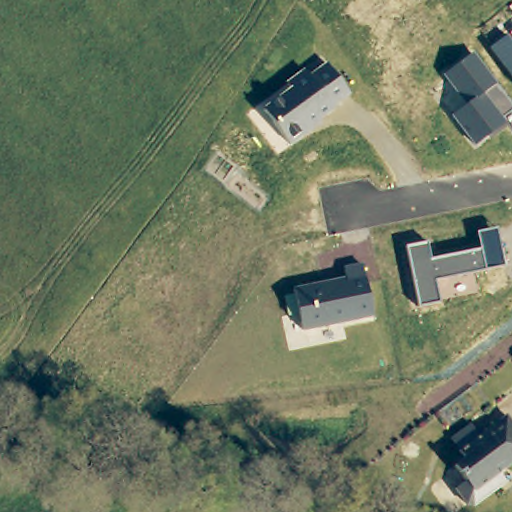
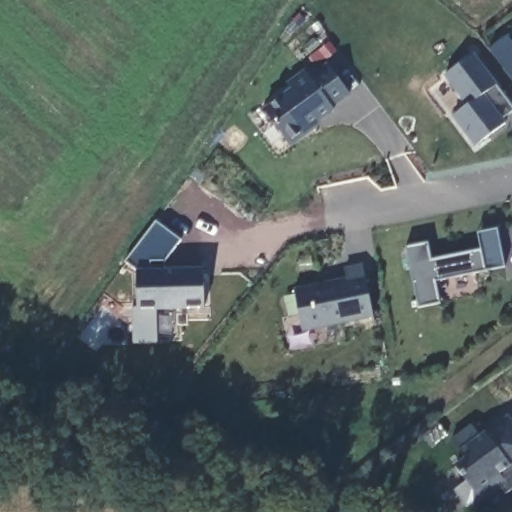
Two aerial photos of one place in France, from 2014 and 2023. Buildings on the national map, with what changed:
unchanged [(488,49),(508,35),(512,40),(512,81),(488,49)]
unchanged [(502,118),(507,124),(474,148),(451,116),(464,106),(442,75),(473,53),(512,106),(512,112),(502,118)]
unchanged [(320,121),(322,124),(292,147),(262,108),(289,87),(284,81),(303,67),(310,75),(326,63),(352,95),(320,121)]
new [(157,222),(179,240),(164,260),(165,269),(204,268),(205,307),(138,310),(136,269),(126,262),(157,222)]
unchanged [(505,266),(436,281),(440,303),(418,308),(406,246),(428,242),(432,259),(480,249),(477,231),(498,227),(505,266)]
unchanged [(374,318),(302,332),(293,289),(346,278),(344,267),(362,264),(374,318)]
unchanged [(512,422),(512,463),(502,469),(496,479),(502,486),(473,505),(464,504),(452,488),(465,479),(454,464),(468,455),(462,447),(506,415),(512,422)]

